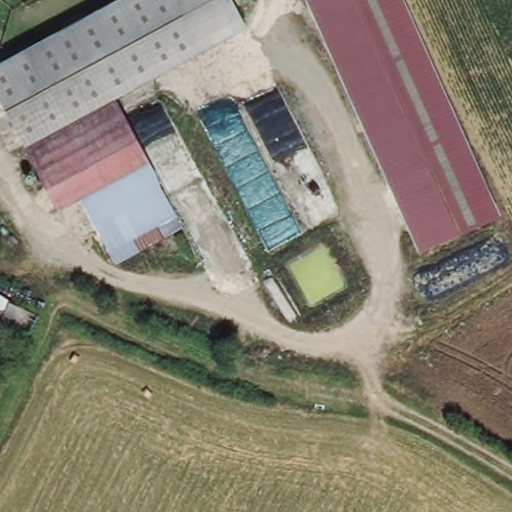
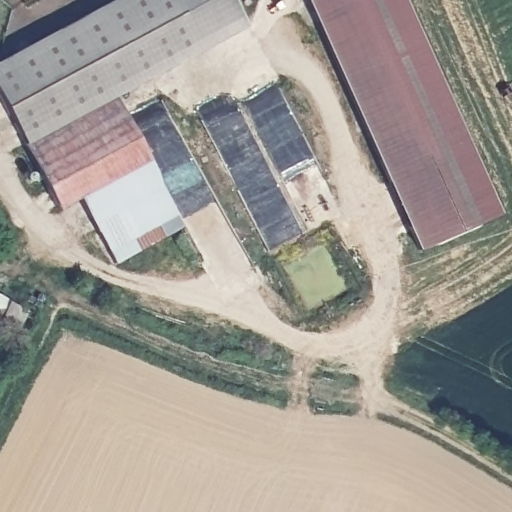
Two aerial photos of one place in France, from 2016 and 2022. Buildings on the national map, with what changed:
unchanged [(95,10),(113,0),(207,0),(225,32),(135,81),(95,10)]
unchanged [(248,26),(225,32),(207,0),(235,0),(248,26)]
unchanged [(502,213),(416,250),(311,0),(405,0),(502,213)]
unchanged [(29,139),(0,89),(0,63),(95,10),(135,81),(119,90),(29,139)]
unchanged [(29,139),(119,90),(156,157),(84,198),(66,208),(29,139)]
unchanged [(156,157),(192,224),(119,265),(84,198),(156,157)]

